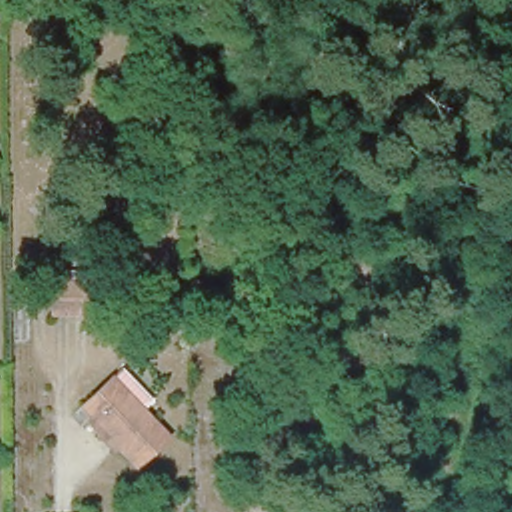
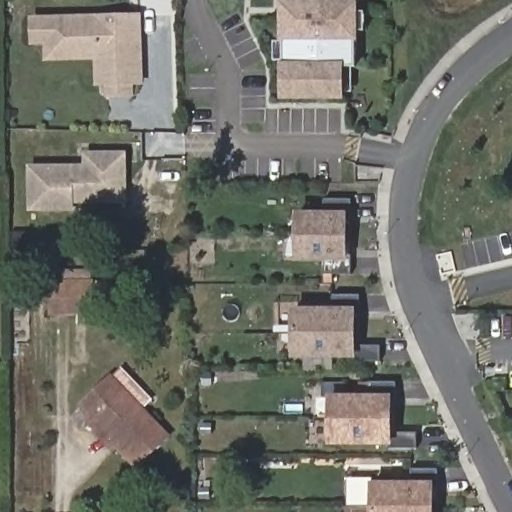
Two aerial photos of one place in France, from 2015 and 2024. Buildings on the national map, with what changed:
new [(345,99),(281,99),(280,64),(286,64),(285,40),(281,40),(280,2),(285,3),(285,0),(355,0),(355,2),(358,2),(359,40),(355,40),(355,66),(345,67),(345,99)]
new [(32,19),(137,18),(138,84),(100,84),(99,40),(32,41),(32,19)]
new [(125,202),(99,202),(86,190),(72,190),(72,208),(32,209),(31,168),(74,167),(73,175),(87,174),(87,155),(125,154),(125,202)]
new [(352,274),(326,274),(326,261),(295,262),(293,212),(327,212),(325,199),(352,198),(351,214),(349,215),(348,243),(351,242),(352,274)]
unchanged [(75,277),(76,312),(68,312),(55,312),(54,277),(67,277),(75,277)]
new [(381,362),(355,362),(355,358),(292,358),(291,308),(333,308),(333,296),(360,295),(361,311),(357,311),(357,346),(380,345),(381,362)]
unchanged [(84,403),(117,371),(124,365),(142,385),(154,398),(148,404),(171,430),(145,457),(139,463),(84,403)]
new [(418,448),(391,450),(391,445),(327,445),(326,395),(371,394),(370,383),(397,383),(397,399),(394,399),(393,432),(417,433),(418,448)]
new [(414,481),(413,470),(440,470),(440,486),(436,486),(436,512),(371,512),(370,482),(414,481)]

